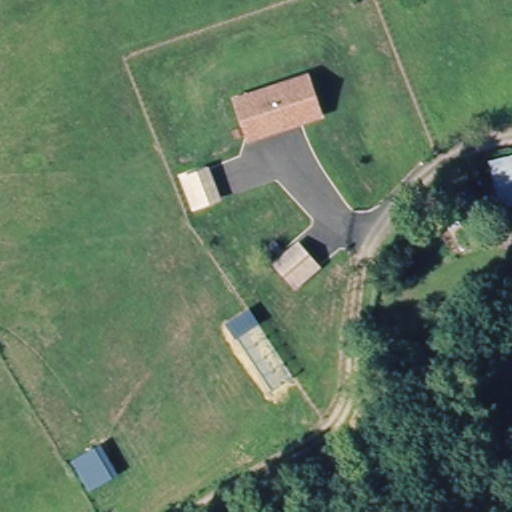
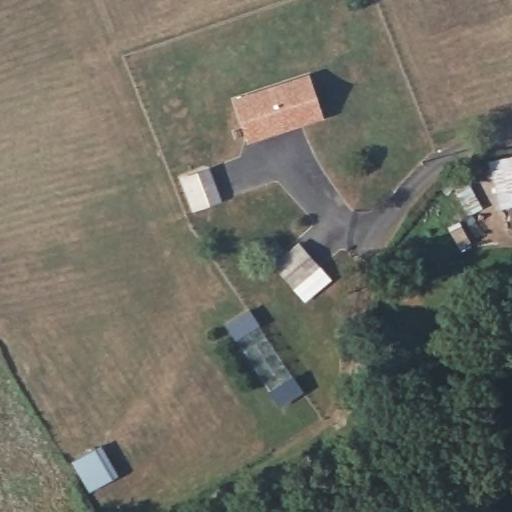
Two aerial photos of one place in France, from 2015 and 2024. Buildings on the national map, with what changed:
unchanged [(229,98),(309,73),(323,118),(245,145),(229,98)]
unchanged [(504,216),(488,171),(512,163),(512,213),(504,216)]
unchanged [(189,213),(176,179),(208,167),(221,201),(189,213)]
unchanged [(269,264),(297,240),(322,268),(295,292),(269,264)]
unchanged [(67,462),(101,442),(119,475),(85,492),(67,462)]

